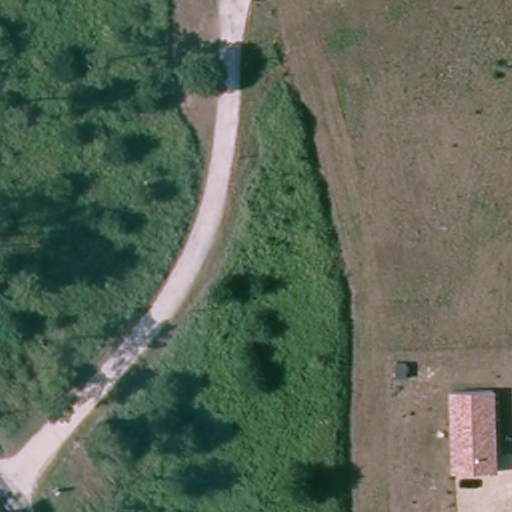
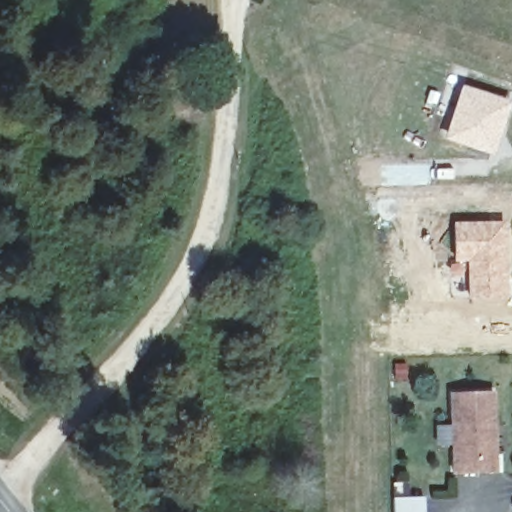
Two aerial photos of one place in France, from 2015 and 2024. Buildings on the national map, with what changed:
new [(461,84),(510,100),(492,154),(443,138),(461,84)]
new [(506,220),(507,299),(466,299),(463,264),(452,264),(451,221),(506,220)]
unchanged [(496,391),(498,473),(452,473),(450,394),(496,391)]
new [(425,495),(426,512),(393,512),(392,494),(425,495)]

